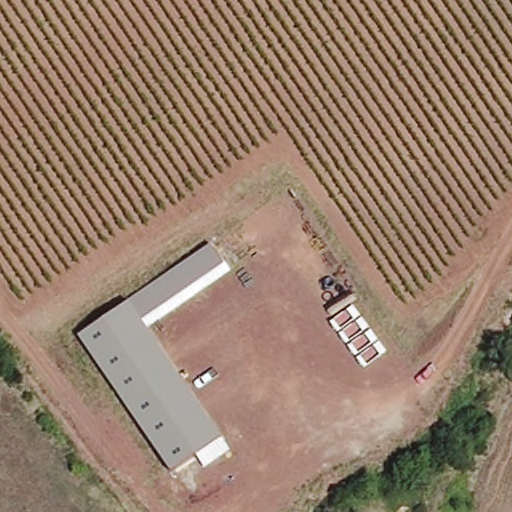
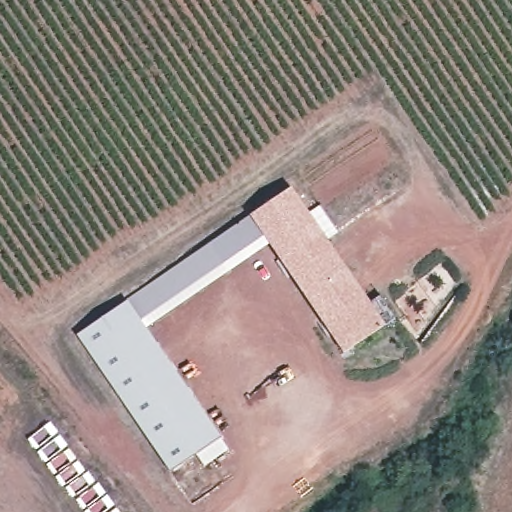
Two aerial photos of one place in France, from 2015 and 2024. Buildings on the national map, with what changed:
new [(311,215),(321,205),(340,232),(328,241),(370,301),(381,296),(399,321),(385,326),(343,355),(271,245),(230,272),(210,244),(292,187),(311,215)]
unchanged [(230,272),(149,329),(230,449),(204,468),(195,455),(172,472),(76,337),(210,244),(230,272)]

